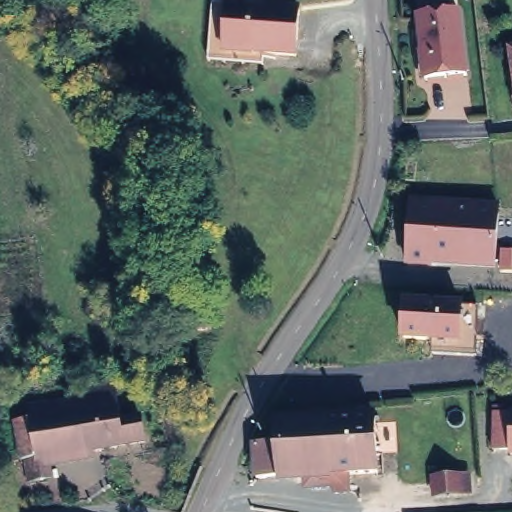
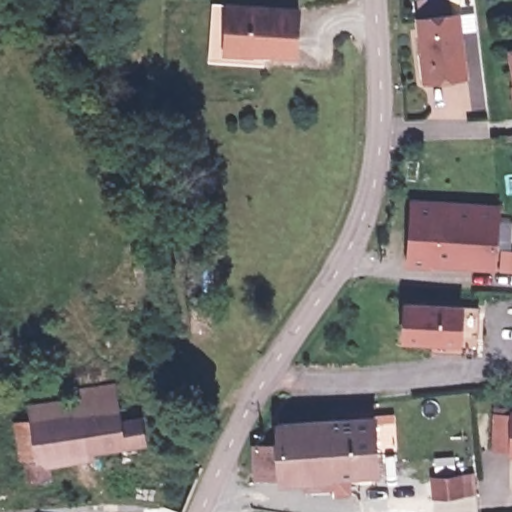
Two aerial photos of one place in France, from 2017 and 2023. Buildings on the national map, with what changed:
unchanged [(286,5),(283,50),(252,50),(251,47),(241,47),(241,51),(212,50),(215,4),(286,5)]
unchanged [(413,49),(418,47),(416,25),(414,8),(439,5),(440,21),(455,20),(463,82),(421,89),(416,89),(413,49)]
unchanged [(512,42),(512,53),(510,42),(512,42)]
unchanged [(502,199),(499,257),(411,252),(415,194),(502,199)]
unchanged [(477,358),(430,356),(431,341),(400,340),(402,300),(480,306),(477,358)]
unchanged [(12,432),(25,430),(25,427),(29,426),(28,415),(71,407),(70,395),(109,388),(116,427),(135,425),(137,450),(35,466),(38,486),(23,488),(20,465),(17,465),(12,432)]
unchanged [(509,452),(490,451),(490,407),(512,408),(512,458),(508,457),(509,452)]
unchanged [(386,460),(382,461),(340,465),(340,473),(311,475),(310,467),(263,470),(259,435),(283,432),(283,415),(380,408),(381,440),(387,439),(386,460)]

